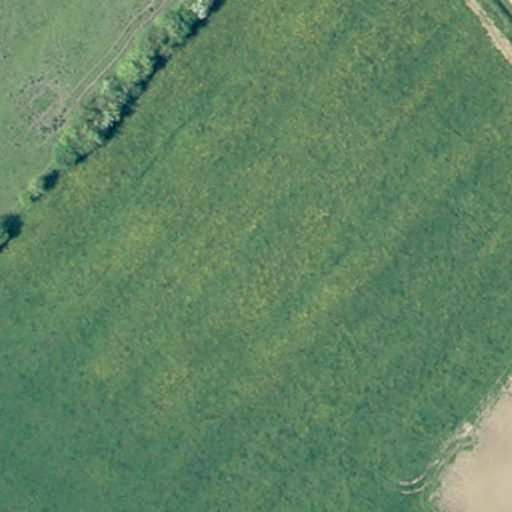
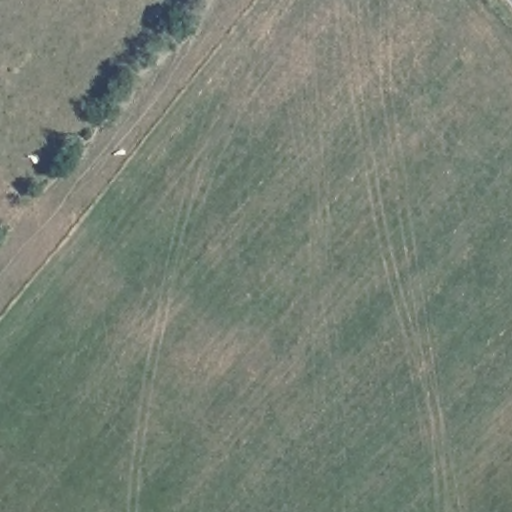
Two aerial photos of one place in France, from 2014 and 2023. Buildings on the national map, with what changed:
[]

